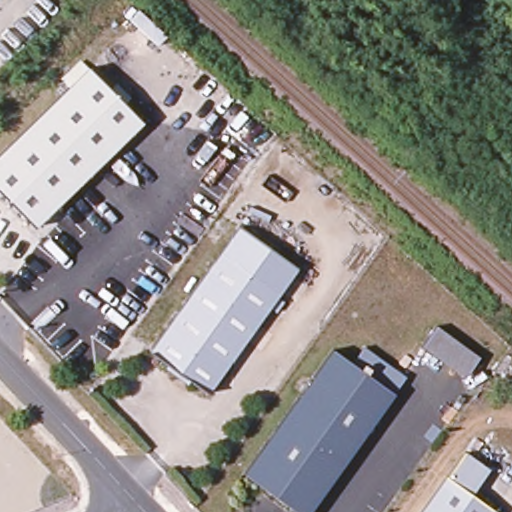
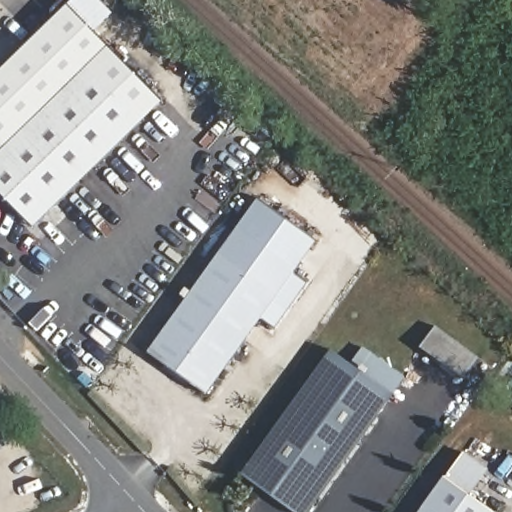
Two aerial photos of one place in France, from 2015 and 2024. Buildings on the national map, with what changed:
new [(73,0),(100,0),(113,12),(96,33),(164,102),(143,122),(141,120),(139,119),(88,67),(0,154),(0,72),(69,6),(73,0)]
unchanged [(139,119),(141,120),(133,127),(33,227),(0,194),(0,154),(88,67),(139,119)]
new [(258,199),(315,242),(294,272),(307,282),(274,327),(259,317),(267,307),(277,312),(286,301),(276,293),(293,269),(238,229),(258,199)]
unchanged [(238,229),(293,269),(276,293),(286,301),(277,312),(267,307),(204,394),(146,352),(219,253),(238,229)]
unchanged [(478,355),(463,376),(422,343),(437,323),(478,355)]
unchanged [(350,362),(363,345),(406,377),(394,395),(350,362)]
unchanged [(293,512),(241,473),(332,350),(350,362),(394,395),(308,512),(293,512)]
unchanged [(459,453),(484,470),(466,496),(488,512),(418,512),(442,478),(459,453)]

